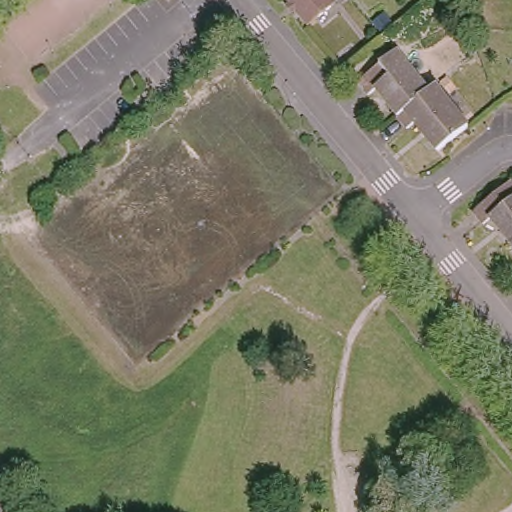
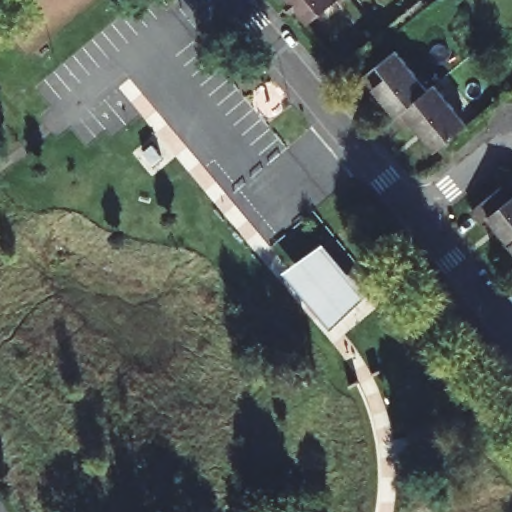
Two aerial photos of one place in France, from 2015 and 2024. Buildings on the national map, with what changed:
unchanged [(332,5),(305,27),(283,0),(328,0),(332,5)]
unchanged [(363,94),(357,99),(346,86),(384,56),(417,96),(385,121),(363,94)]
unchanged [(424,91),(455,130),(425,155),(402,128),(396,134),(385,121),(417,96),(424,91)]
unchanged [(486,214),(481,218),(471,207),(509,176),(512,180),(512,239),(509,242),(486,214)]
unchanged [(509,242),(512,239),(512,245),(509,242)]
new [(286,274),(322,244),(366,298),(330,328),(286,274)]

